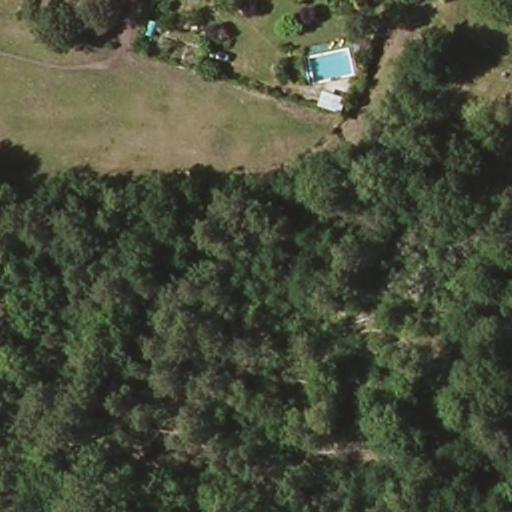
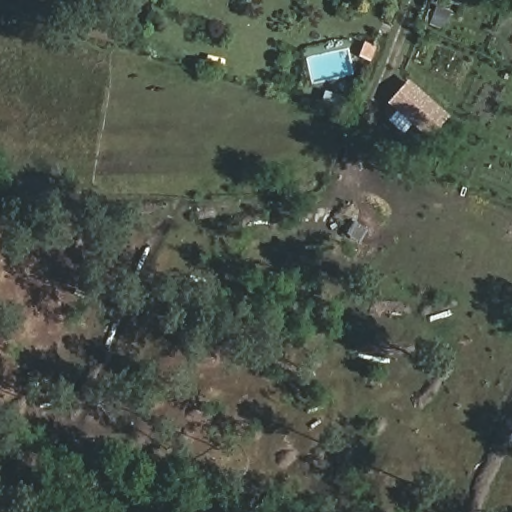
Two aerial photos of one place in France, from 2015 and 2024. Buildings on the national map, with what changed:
new [(388,104),(409,80),(449,116),(428,140),(388,104)]

